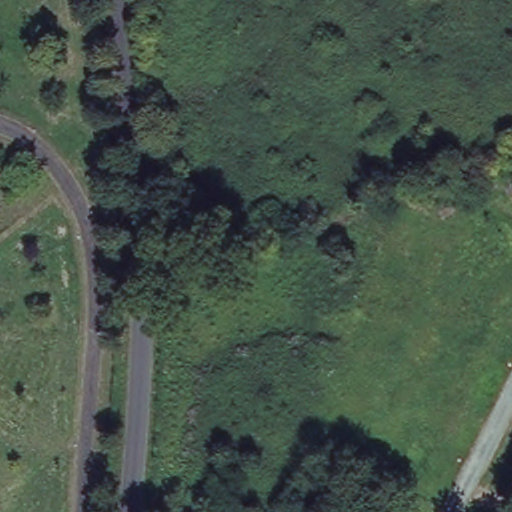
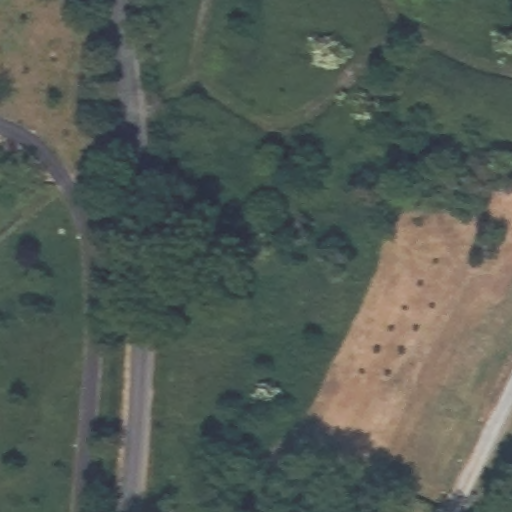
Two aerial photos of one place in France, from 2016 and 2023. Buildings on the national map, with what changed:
[]

